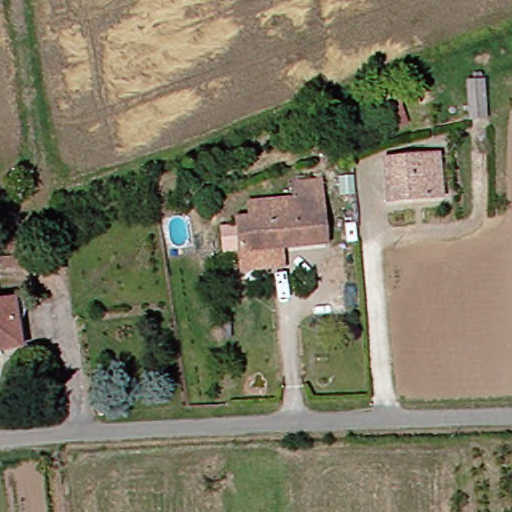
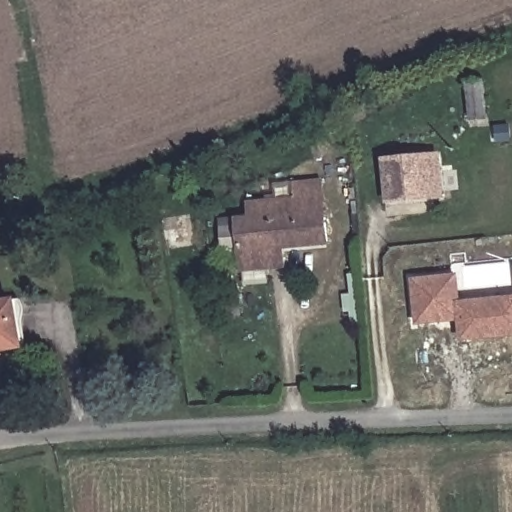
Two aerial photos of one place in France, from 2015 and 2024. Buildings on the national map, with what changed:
unchanged [(467,120),(463,85),(482,84),(486,118),(467,120)]
demolished [(407,126),(392,132),(381,102),(394,97),(407,126)]
unchanged [(441,197),(386,204),(382,162),(437,156),(441,197)]
unchanged [(250,254),(247,220),(260,218),(258,202),(303,197),(302,185),(325,183),(333,246),(250,254)]
new [(455,274),(457,301),(490,297),(491,328),(485,330),(486,336),(460,337),(458,317),(415,321),(412,278),(455,274)]
unchanged [(0,306),(0,283),(3,306),(0,306)]
new [(512,296),(512,333),(498,335),(497,328),(491,328),(490,297),(512,296)]
unchanged [(0,354),(0,306),(3,306),(21,303),(25,351),(0,354)]

